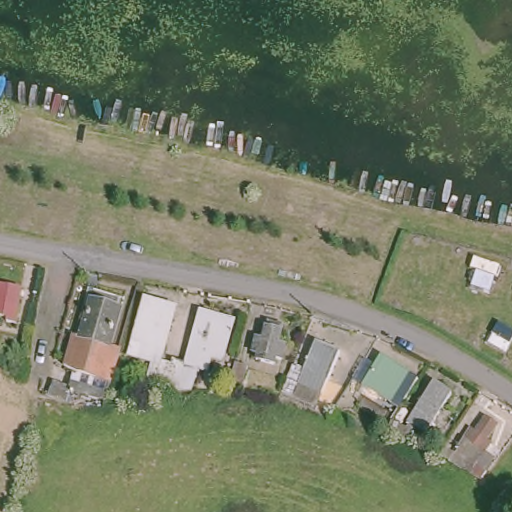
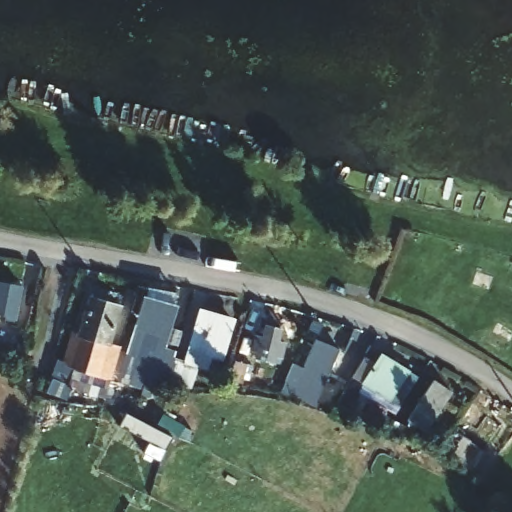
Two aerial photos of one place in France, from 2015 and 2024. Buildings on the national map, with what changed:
unchanged [(15,319),(0,315),(0,277),(23,278),(15,319)]
unchanged [(184,299),(169,355),(185,358),(197,307),(240,317),(217,356),(219,372),(202,371),(195,390),(147,386),(151,360),(130,353),(145,292),(184,299)]
unchanged [(126,300),(112,344),(122,347),(111,385),(69,380),(73,367),(62,359),(87,294),(126,300)]
unchanged [(286,365),(254,356),(260,319),(292,328),(286,365)]
unchanged [(320,408),(280,396),(293,357),(305,363),(313,335),(344,349),(320,408)]
unchanged [(412,367),(397,397),(415,408),(432,378),(455,388),(422,442),(386,424),(355,406),(384,353),(412,367)]
unchanged [(510,430),(487,467),(455,459),(488,410),(510,430)]

